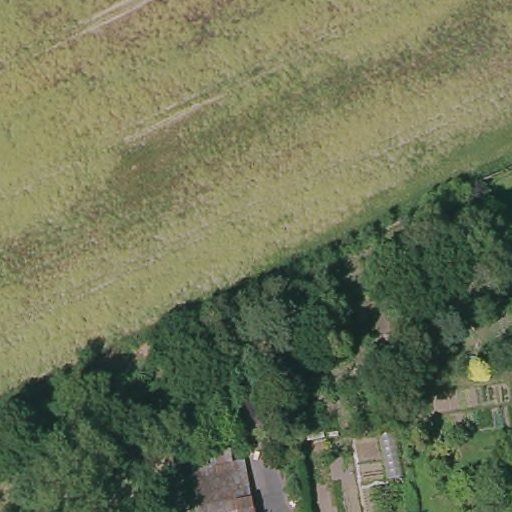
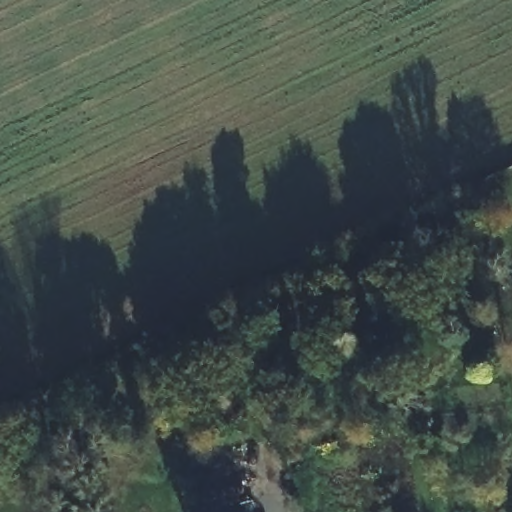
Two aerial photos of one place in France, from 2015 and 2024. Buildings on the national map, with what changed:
unchanged [(207,466),(207,451),(227,447),(227,462),(242,463),(250,512),(199,512),(193,470),(207,466)]

